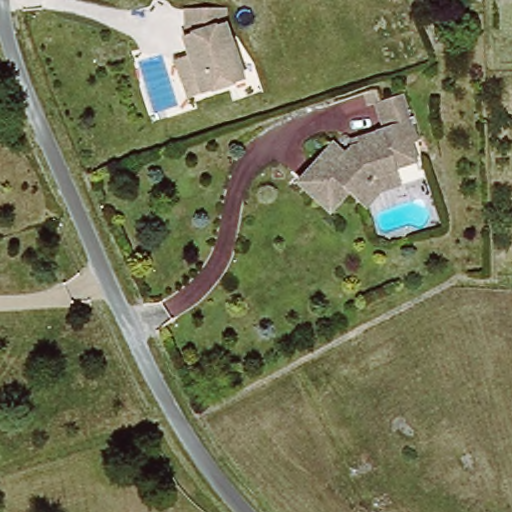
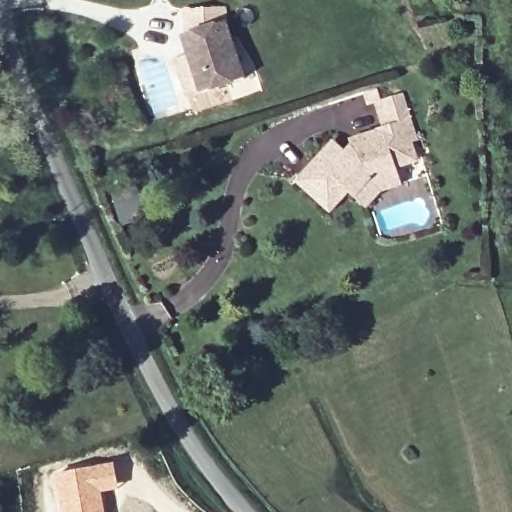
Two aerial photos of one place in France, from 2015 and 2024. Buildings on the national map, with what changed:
unchanged [(178,57),(192,53),(186,34),(190,32),(190,6),(229,6),(229,21),(247,79),(204,91),(190,95),(178,57)]
unchanged [(378,191),(365,205),(354,195),(348,191),(328,211),(297,181),(334,140),(344,150),(351,147),(350,139),(374,132),(375,128),(382,126),(374,102),(400,94),(408,117),(417,140),(409,143),(415,159),(394,166),(396,170),(399,182),(378,191)]
new [(119,490),(102,493),(105,512),(60,512),(53,474),(114,462),(119,490)]

